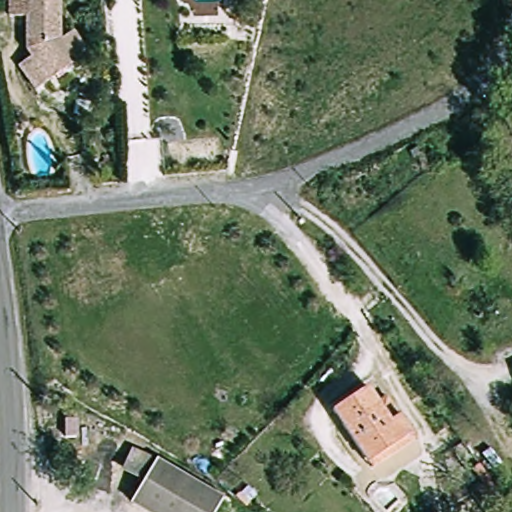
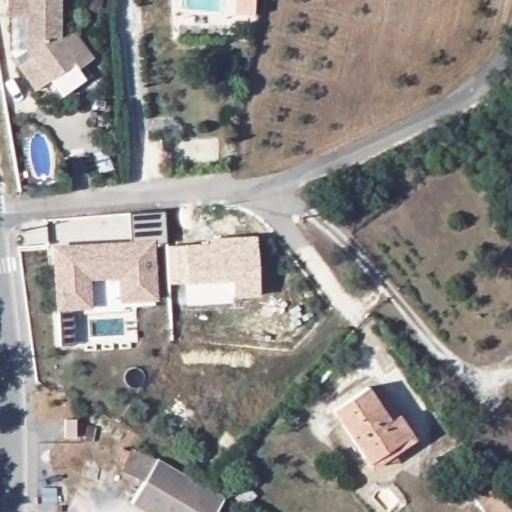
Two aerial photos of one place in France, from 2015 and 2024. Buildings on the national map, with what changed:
unchanged [(35,87),(19,67),(33,54),(28,47),(26,0),(58,0),(61,37),(73,28),(89,48),(76,58),(35,87)]
new [(90,280),(91,309),(55,311),(52,245),(131,242),(128,214),(164,212),(166,242),(154,243),(157,299),(118,302),(117,278),(90,280)]
new [(183,244),(209,242),(209,239),(256,236),(259,297),(233,298),(232,281),(186,283),(170,285),(168,247),(183,244)]
unchanged [(397,407),(418,436),(375,468),(333,412),(363,390),(384,417),(397,407)]
unchanged [(135,442),(157,457),(158,455),(225,499),(216,512),(153,512),(131,497),(148,473),(126,459),(135,442)]

